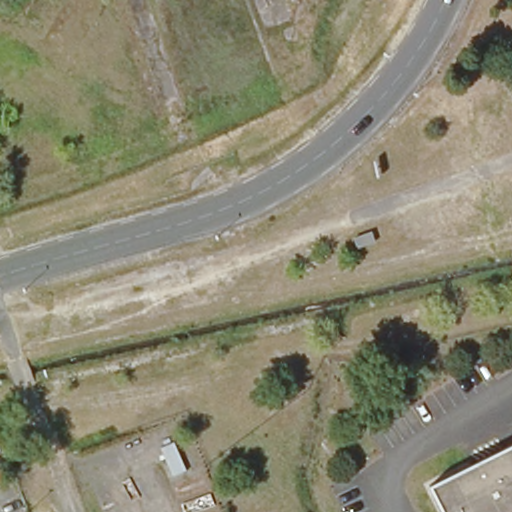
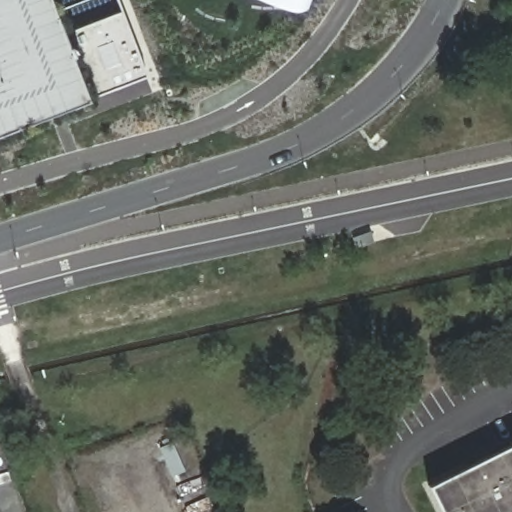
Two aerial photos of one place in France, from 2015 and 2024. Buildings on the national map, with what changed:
new [(0,139),(0,0),(125,0),(156,80),(0,139)]
new [(300,4),(288,0),(302,0),(300,4)]
unchanged [(512,512),(444,512),(430,487),(512,446),(512,512)]

